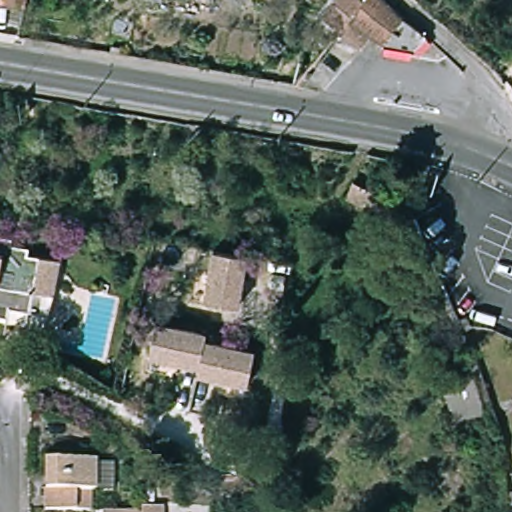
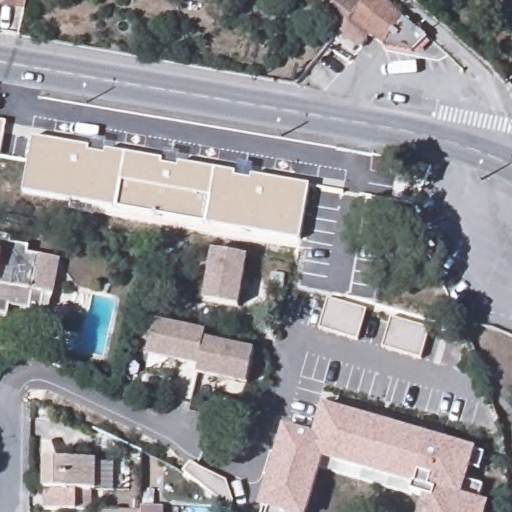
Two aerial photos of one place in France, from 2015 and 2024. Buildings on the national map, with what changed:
unchanged [(180,0),(208,0),(208,2),(180,0)]
unchanged [(381,51),(368,41),(358,51),(338,35),(326,26),(346,0),(350,0),(360,8),(365,0),(383,0),(430,42),(424,57),(381,51)]
new [(2,159),(0,158),(0,121),(8,122),(2,159)]
new [(91,149),(91,153),(105,156),(107,152),(164,162),(163,166),(179,168),(180,165),(238,175),(237,178),(252,180),(254,176),(311,186),(302,242),(25,194),(34,141),(91,149)]
unchanged [(407,244),(365,220),(371,212),(341,194),(342,191),(351,176),(401,202),(397,218),(411,243),(407,244)]
unchanged [(19,242),(18,249),(37,253),(36,258),(67,265),(60,298),(50,296),(45,318),(15,311),(13,321),(0,318),(0,245),(2,239),(19,242)]
unchanged [(248,257),(239,306),(202,300),(211,250),(248,257)]
new [(367,312),(357,342),(318,330),(327,300),(367,312)]
new [(430,330),(421,361),(381,349),(390,319),(430,330)]
unchanged [(150,361),(156,324),(206,333),(204,342),(199,370),(150,361)]
unchanged [(204,342),(254,351),(247,388),(198,379),(199,370),(204,342)]
demolished [(440,384),(469,373),(481,402),(451,411),(440,384)]
new [(268,479),(264,478),(271,454),(275,453),(283,426),(313,435),(322,404),(476,450),(475,451),(485,455),(480,472),(472,468),(469,481),(484,487),(479,502),(490,505),(488,512),(419,512),(423,499),(411,495),(411,493),(322,469),(309,512),(266,512),(258,509),(268,479)]
unchanged [(93,462),(93,489),(86,489),(86,508),(43,508),(44,462),(93,462)]
new [(191,463),(199,468),(227,483),(234,505),(229,510),(183,473),(191,463)]
unchanged [(160,499),(160,512),(141,512),(140,504),(141,499),(160,499)]
unchanged [(113,512),(114,504),(140,504),(141,512),(113,512)]

